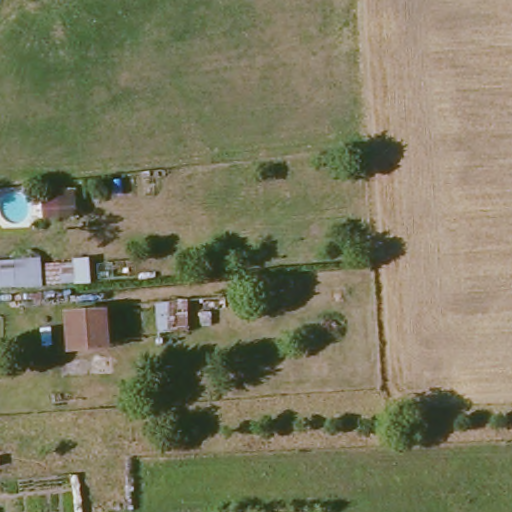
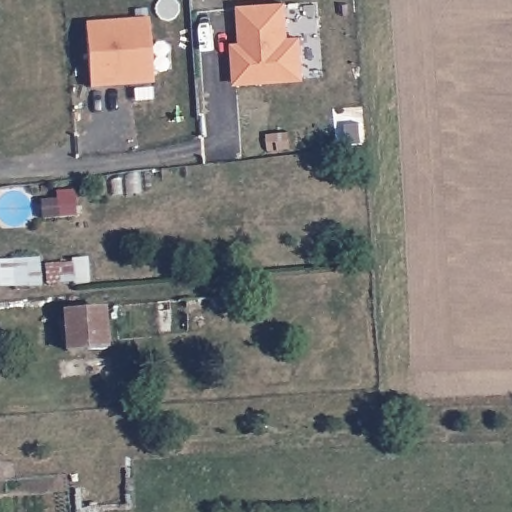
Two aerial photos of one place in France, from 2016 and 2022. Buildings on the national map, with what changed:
new [(236,84),(233,42),(241,42),(238,6),(288,2),(290,37),(301,37),(304,79),(236,84)]
new [(92,88),(87,25),(148,19),(154,83),(92,88)]
unchanged [(45,287),(0,292),(0,262),(44,257),(45,287)]
demolished [(196,331),(158,334),(157,301),(196,297),(196,331)]
unchanged [(109,315),(112,353),(73,356),(71,318),(109,315)]

